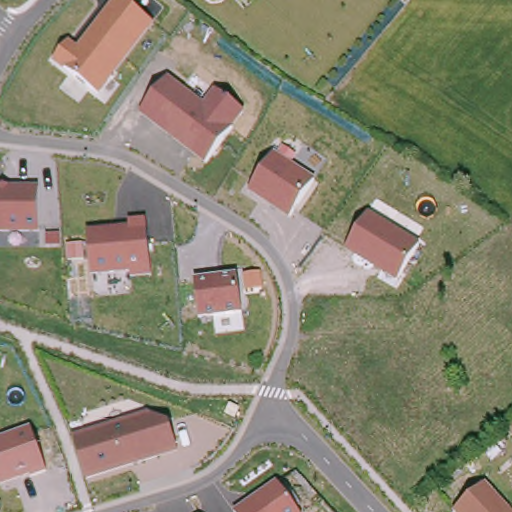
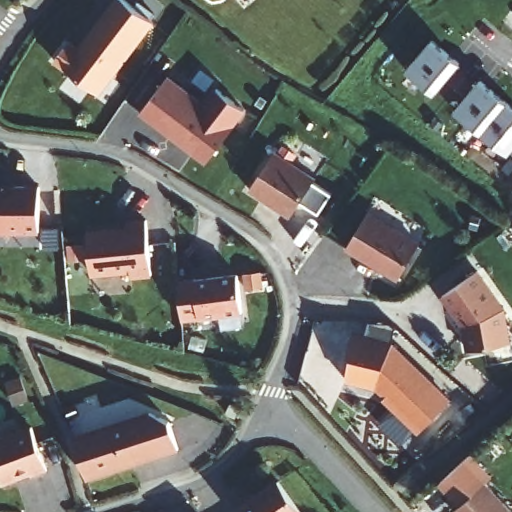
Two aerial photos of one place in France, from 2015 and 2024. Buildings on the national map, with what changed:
unchanged [(154,23),(100,97),(54,61),(69,41),(77,47),(113,0),(122,0),(154,23)]
new [(457,62),(431,92),(404,68),(431,39),(457,62)]
unchanged [(204,103),(215,89),(245,112),(205,164),(139,114),(169,76),(204,103)]
new [(505,101),(480,132),(454,109),(479,79),(505,101)]
new [(512,108),(512,146),(506,154),(480,132),(505,101),(512,108)]
unchanged [(316,180),(289,220),(248,193),(274,152),(316,180)]
unchanged [(0,188),(38,187),(40,235),(0,235),(0,188)]
unchanged [(420,242),(397,283),(345,252),(370,211),(420,242)]
unchanged [(145,219),(151,278),(131,279),(131,274),(92,279),(87,231),(129,227),(128,220),(145,219)]
new [(479,267),(506,304),(512,336),(512,339),(472,346),(467,321),(445,291),(479,267)]
unchanged [(242,314),(199,320),(195,279),(237,274),(242,314)]
new [(370,322),(397,329),(394,343),(366,336),(370,322)]
new [(355,355),(350,355),(355,333),(394,343),(453,399),(422,431),(387,397),(391,393),(384,387),(349,379),(355,355)]
unchanged [(147,413),(170,421),(178,453),(87,482),(72,438),(147,413)]
unchanged [(0,483),(0,439),(31,427),(47,474),(31,479),(30,476),(2,487),(0,483)]
unchanged [(277,481),(299,512),(234,512),(234,511),(277,481)]
unchanged [(454,512),(486,483),(512,511),(512,512),(454,512)]

